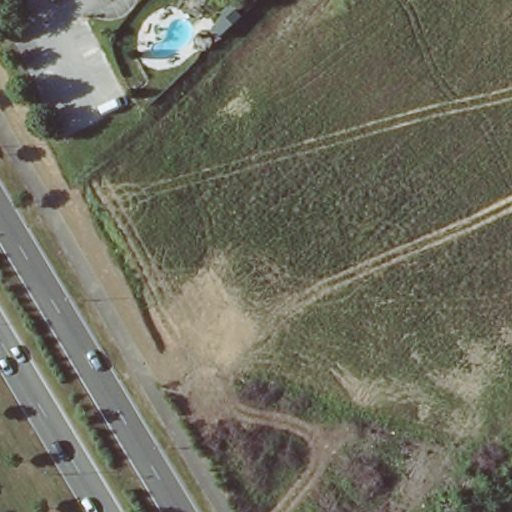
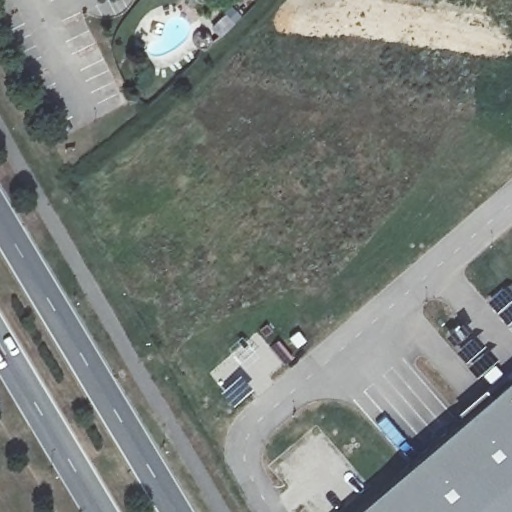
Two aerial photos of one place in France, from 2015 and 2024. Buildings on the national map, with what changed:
new [(458,422),(454,412),(484,388),(489,396),(512,376),(512,512),(352,512),(458,422)]

